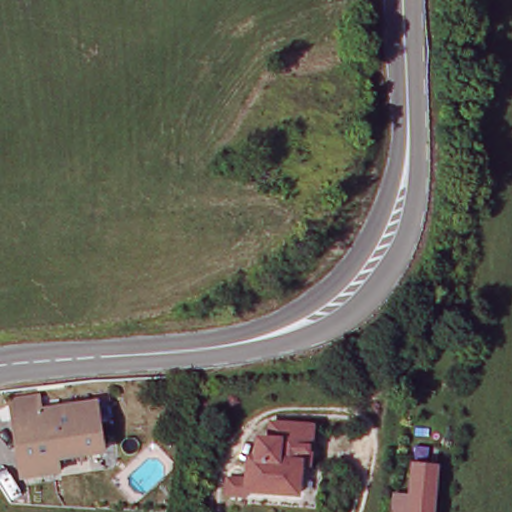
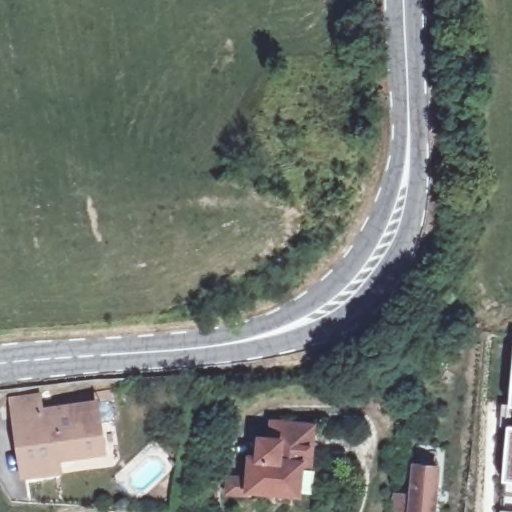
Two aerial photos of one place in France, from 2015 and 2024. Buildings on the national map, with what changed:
new [(512,350),(512,512),(497,512),(512,350)]
unchanged [(96,452),(50,457),(51,471),(25,475),(22,473),(18,471),(15,468),(9,413),(7,401),(35,396),(37,410),(90,403),(96,452)]
unchanged [(228,492),(230,475),(252,477),(253,457),(259,457),(262,437),(272,438),(274,421),(284,422),(316,426),(312,464),(305,463),(302,494),(250,488),(250,494),(228,492)]
unchanged [(440,464),(435,512),(398,512),(400,491),(415,492),(417,463),(440,464)]

